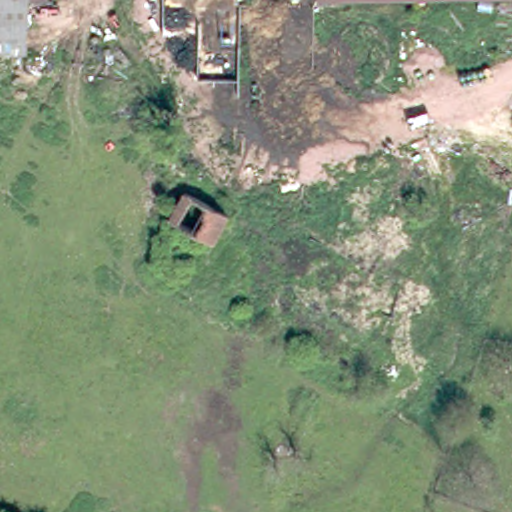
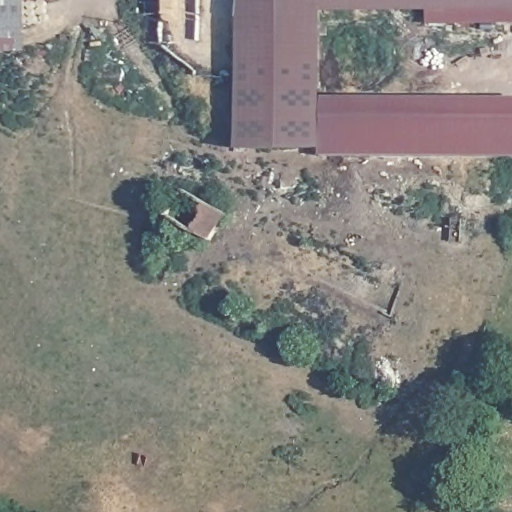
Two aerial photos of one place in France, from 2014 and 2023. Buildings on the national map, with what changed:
new [(0,51),(0,0),(28,0),(28,51),(0,51)]
new [(418,0),(512,0),(512,7),(321,11),(323,148),(242,150),(242,0),(320,0),(320,6),(418,0)]
unchanged [(418,0),(320,6),(320,0),(418,0)]
new [(323,156),(323,148),(322,96),(512,96),(512,156),(323,156)]
demolished [(186,190),(228,214),(213,241),(170,217),(186,190)]

